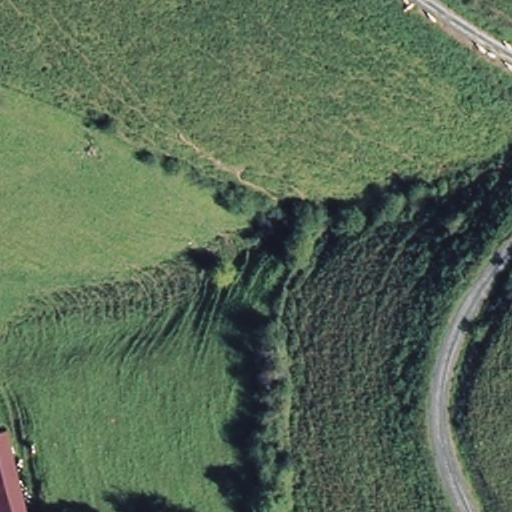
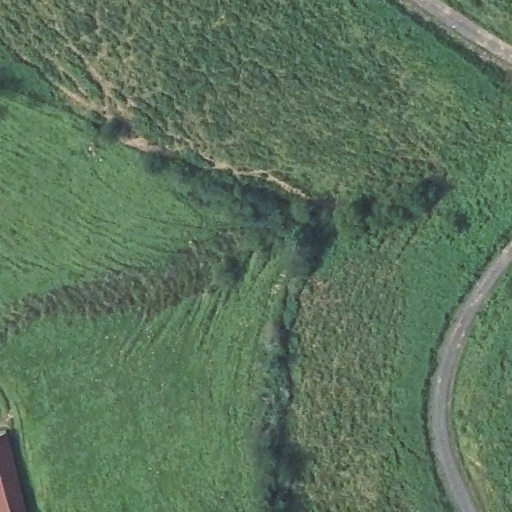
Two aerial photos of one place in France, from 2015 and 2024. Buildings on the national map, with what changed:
unchanged [(22,512),(0,512),(0,428),(4,427),(22,512)]

